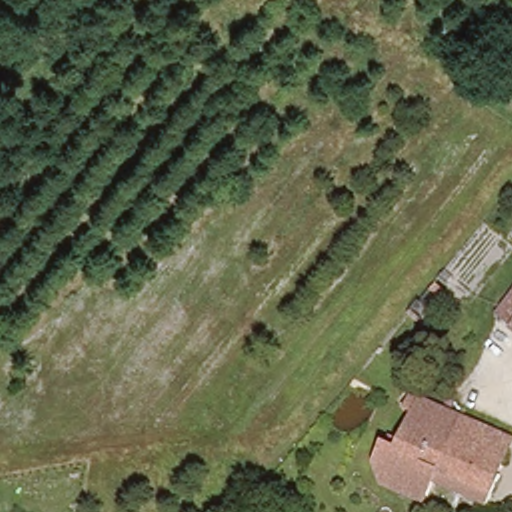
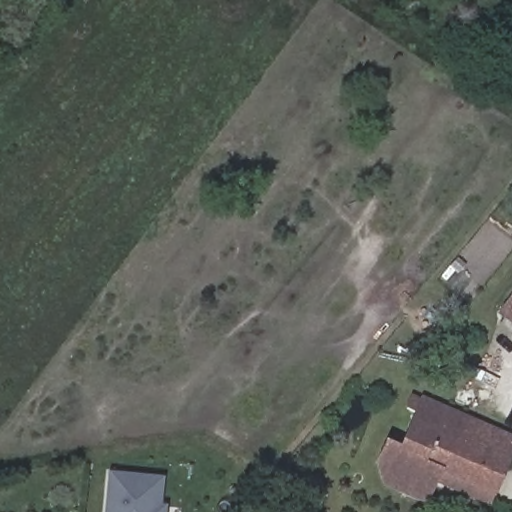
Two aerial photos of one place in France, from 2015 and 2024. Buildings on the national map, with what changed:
unchanged [(498,316),(512,295),(512,327),(498,316)]
unchanged [(485,502),(437,483),(430,504),(387,487),(380,465),(389,442),(403,448),(414,423),(416,419),(416,418),(425,416),(427,412),(429,409),(472,427),(512,443),(512,447),(511,449),(511,451),(502,470),(506,472),(498,490),(496,492),(492,505),(485,502)]
new [(165,476),(162,504),(168,505),(167,512),(106,512),(110,472),(165,476)]

